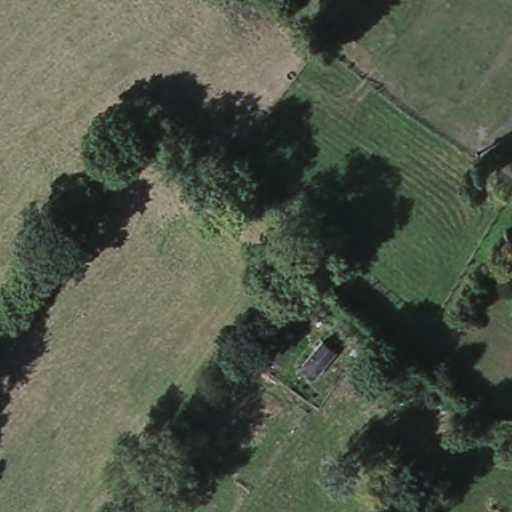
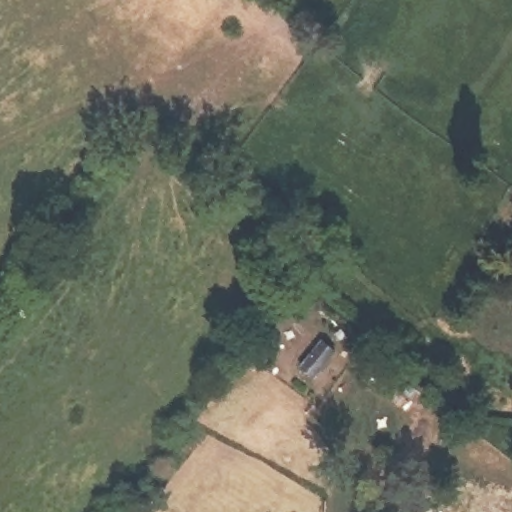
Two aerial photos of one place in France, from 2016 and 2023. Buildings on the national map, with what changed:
unchanged [(295,367),(318,335),(332,349),(311,380),(295,367)]

